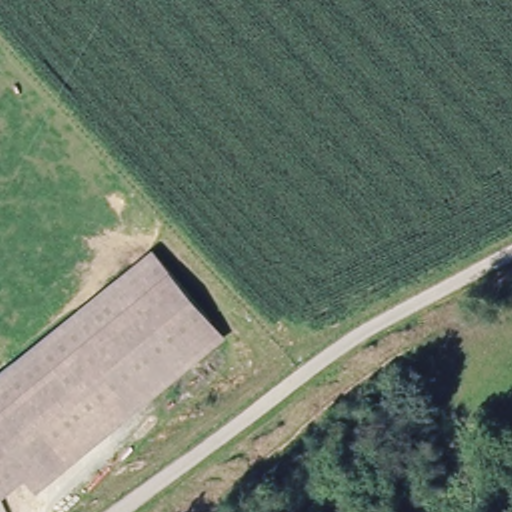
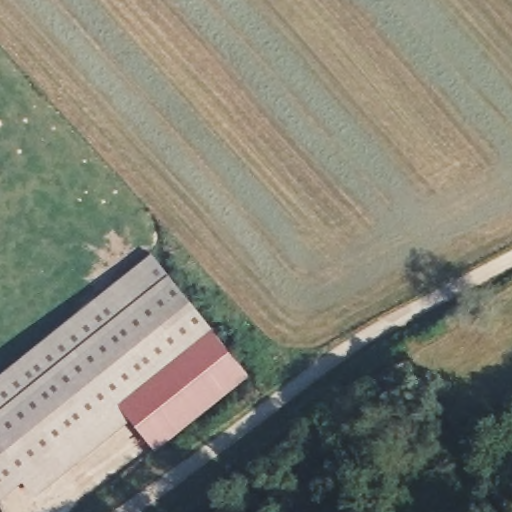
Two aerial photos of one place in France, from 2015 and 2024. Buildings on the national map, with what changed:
unchanged [(23,479),(0,497),(0,375),(151,251),(209,325),(23,479)]
unchanged [(34,493),(23,479),(209,325),(220,339),(34,493)]
new [(154,453),(125,418),(220,339),(248,376),(154,453)]

